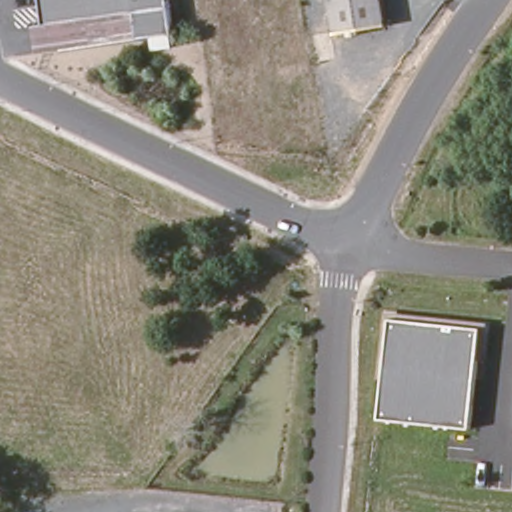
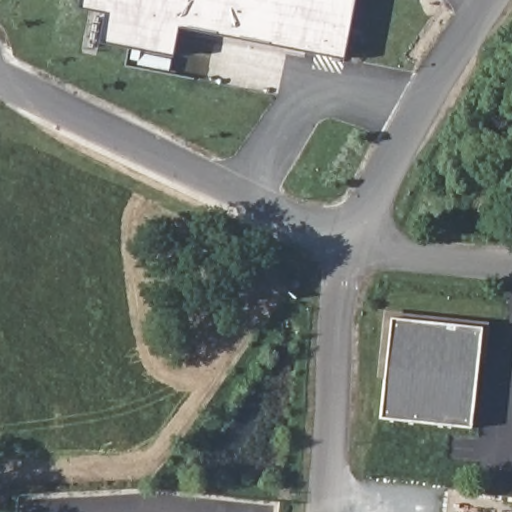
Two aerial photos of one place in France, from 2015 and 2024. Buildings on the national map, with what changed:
demolished [(174,33),(139,38),(134,11),(45,24),(42,0),(169,0),(174,33)]
new [(342,61),(178,29),(172,57),(99,43),(105,14),(77,9),(79,0),(353,0),(342,61)]
demolished [(386,22),(336,29),(331,0),(382,0),(386,22)]
unchanged [(486,326),(473,426),(382,415),(394,315),(486,326)]

